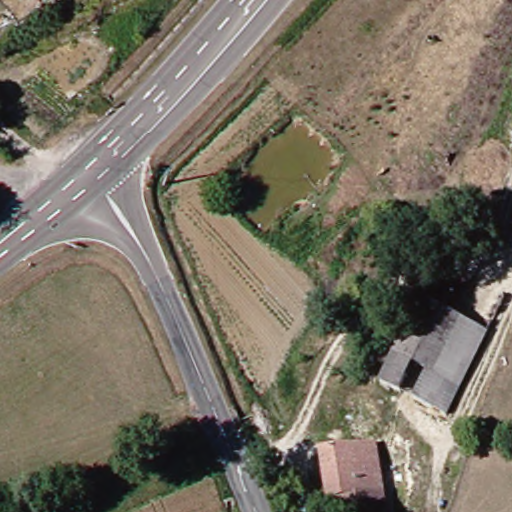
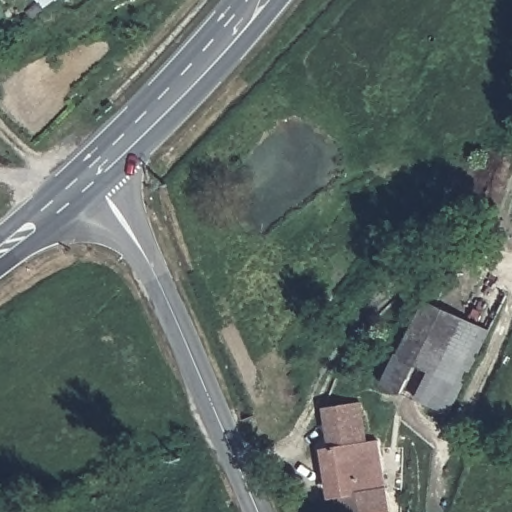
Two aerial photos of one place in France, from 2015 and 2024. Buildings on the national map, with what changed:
unchanged [(482,332),(447,419),(415,406),(427,376),(414,371),(402,400),(381,392),(393,360),(396,361),(419,307),(482,332)]
new [(323,408),(361,402),(367,435),(327,440),(323,408)]
unchanged [(381,508),(348,512),(339,512),(336,491),(325,492),(319,441),(372,434),(381,508)]

